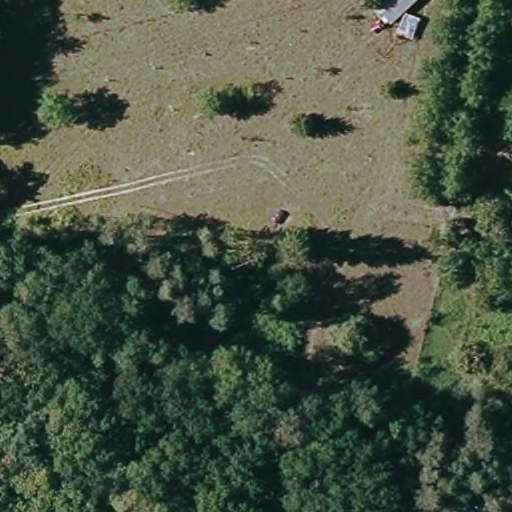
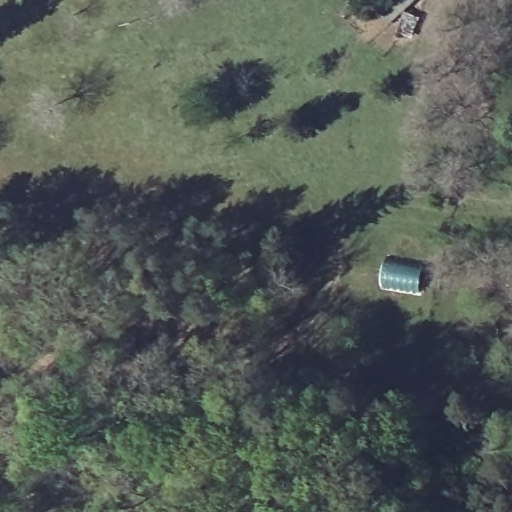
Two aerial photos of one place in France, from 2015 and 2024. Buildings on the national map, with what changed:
unchanged [(390,24),(380,13),(387,7),(380,0),(416,0),(390,24)]

